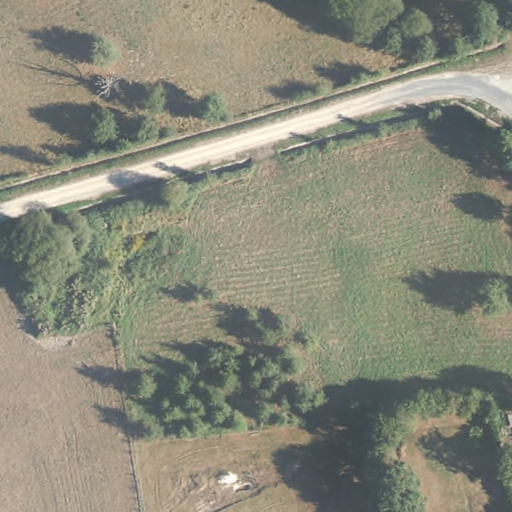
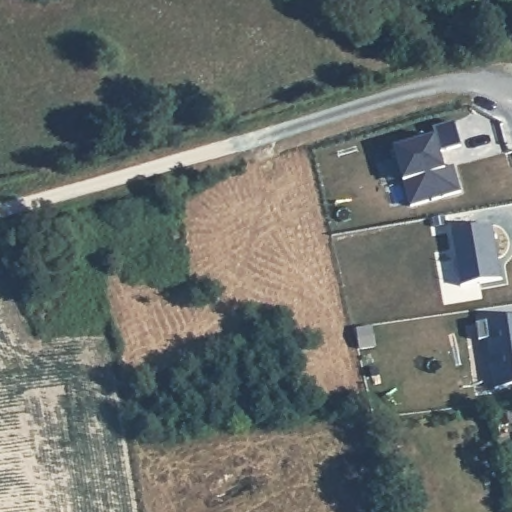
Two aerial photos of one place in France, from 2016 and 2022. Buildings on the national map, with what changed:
new [(442,154),(446,170),(455,166),(461,192),(409,209),(392,151),(435,137),(431,130),(455,122),(462,148),(442,154)]
new [(492,227),(502,281),(461,287),(452,234),(492,227)]
new [(512,320),(512,388),(495,391),(488,341),(480,342),(477,326),(512,320)]

